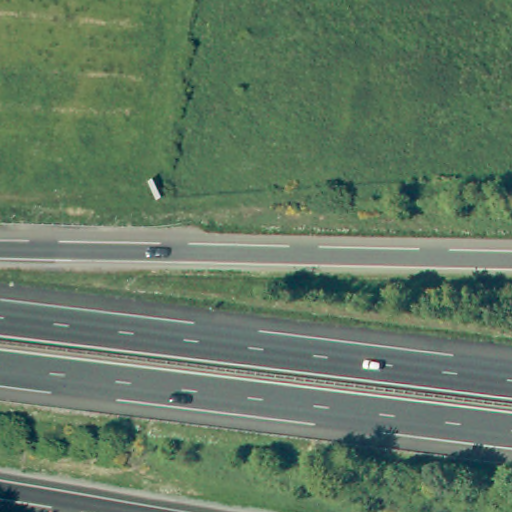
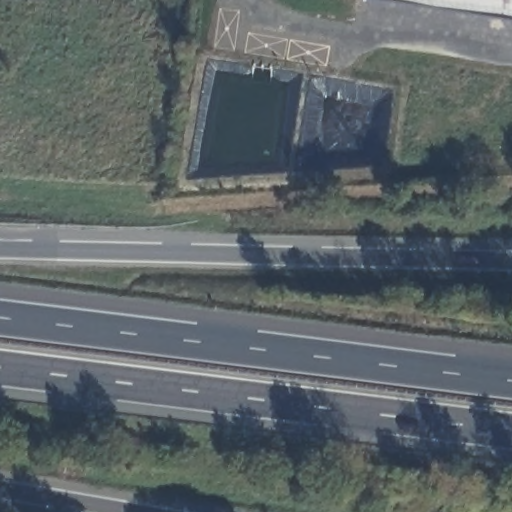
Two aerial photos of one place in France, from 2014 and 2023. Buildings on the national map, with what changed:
new [(390,0),(512,0),(512,20),(390,0)]

